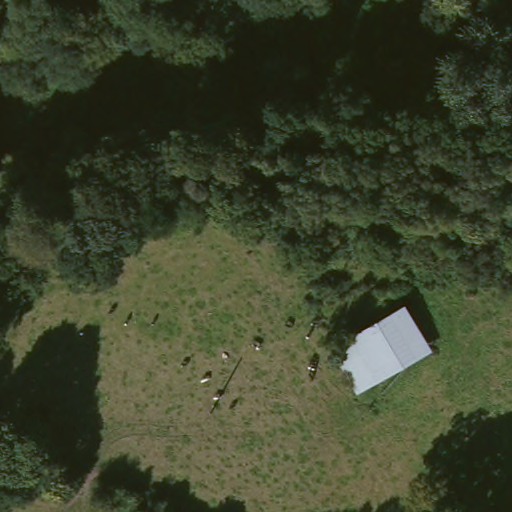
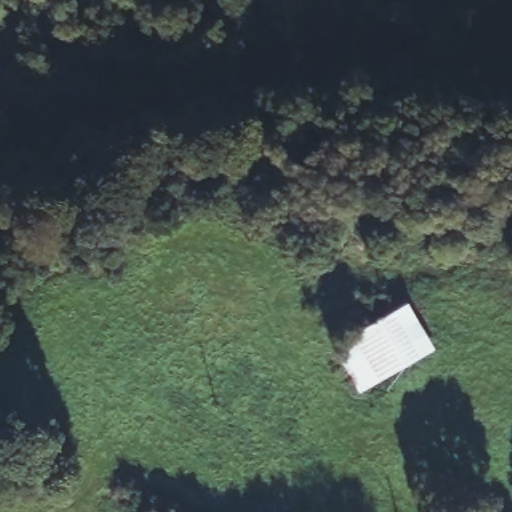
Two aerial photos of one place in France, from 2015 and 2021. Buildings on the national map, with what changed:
unchanged [(358,391),(334,348),(394,314),(419,356),(358,391)]
unchanged [(179,512),(171,512),(173,508),(179,512)]

